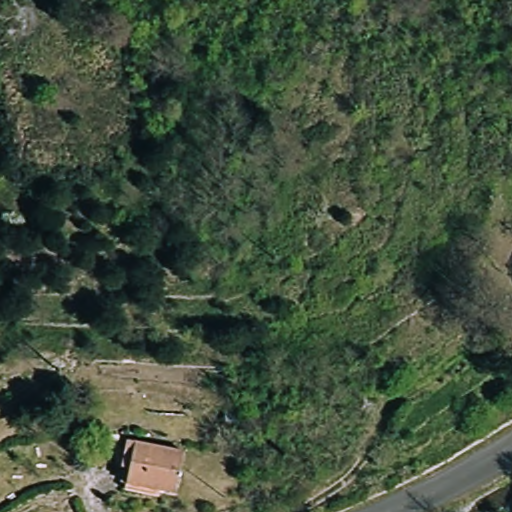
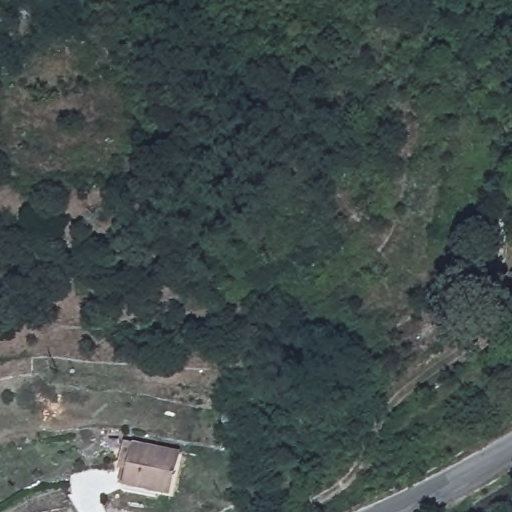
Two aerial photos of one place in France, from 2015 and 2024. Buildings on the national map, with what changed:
unchanged [(158,488),(128,484),(134,436),(184,442),(179,485),(158,483),(158,488)]

